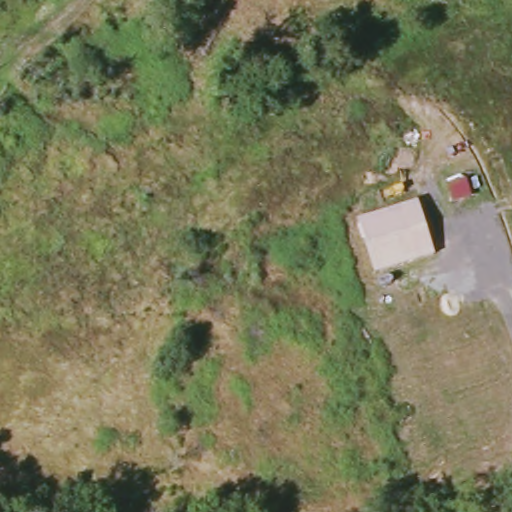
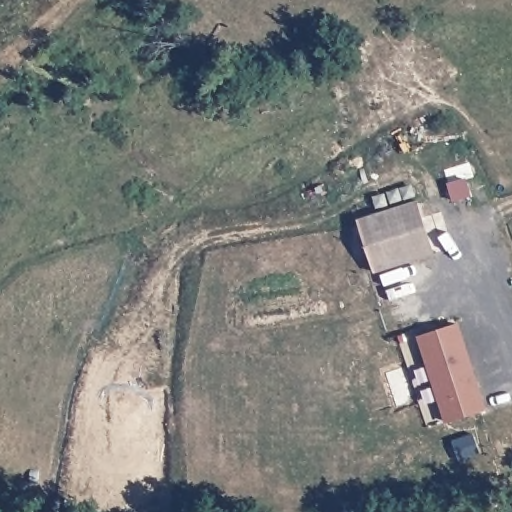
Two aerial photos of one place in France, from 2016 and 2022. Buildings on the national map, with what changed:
unchanged [(435,255),(376,275),(357,221),(419,200),(435,255)]
new [(486,409),(446,422),(418,336),(459,323),(486,409)]

